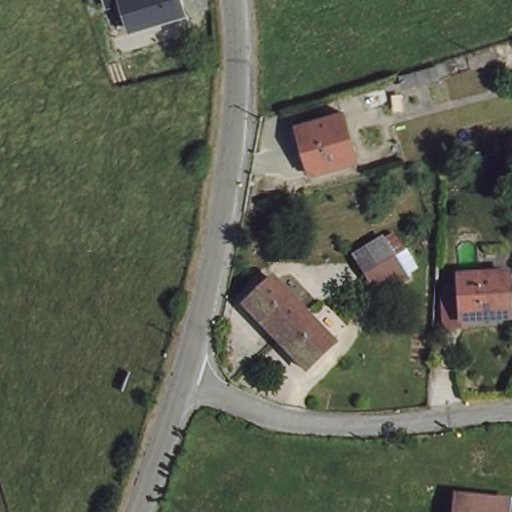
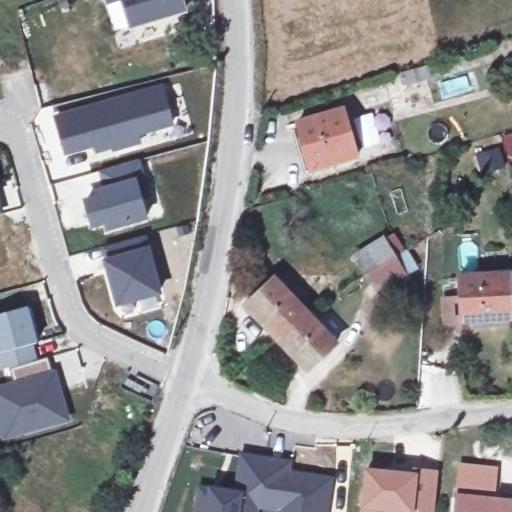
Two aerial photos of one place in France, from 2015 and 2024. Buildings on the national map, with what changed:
unchanged [(187,16),(128,32),(119,5),(106,8),(103,0),(182,0),(187,16)]
unchanged [(423,72),(425,80),(410,85),(409,76),(423,72)]
new [(163,82),(174,125),(140,136),(141,143),(94,153),(93,149),(64,156),(53,112),(163,82)]
unchanged [(344,110),(358,157),(312,171),(298,123),(344,110)]
unchanged [(510,155),(510,154),(506,140),(512,139),(512,154),(510,155)]
new [(98,170),(138,158),(142,173),(137,175),(148,219),(105,231),(104,226),(91,229),(82,199),(89,193),(102,184),(98,170)]
new [(3,213),(0,214),(0,204),(3,213)]
new [(146,235),(161,296),(115,307),(102,247),(146,235)]
unchanged [(376,301),(363,280),(352,262),(379,245),(391,263),(404,285),(376,301)]
unchanged [(247,306),(275,279),(306,312),(277,338),(247,306)]
unchanged [(505,279),(508,324),(458,326),(455,282),(505,279)]
unchanged [(306,312),(335,344),(308,370),(277,338),(306,312)]
new [(12,386),(7,369),(46,358),(64,420),(4,437),(0,435),(0,389),(12,386)]
new [(201,488),(221,491),(237,494),(243,456),(267,460),(258,512),(197,512),(199,501),(201,488)]
new [(288,473),(331,480),(326,512),(281,512),(281,509),(260,506),(267,460),(290,463),(288,473)]
new [(412,471),(439,470),(435,512),(359,512),(366,468),(412,471)]
unchanged [(510,503),(509,512),(458,512),(460,497),(510,503)]

